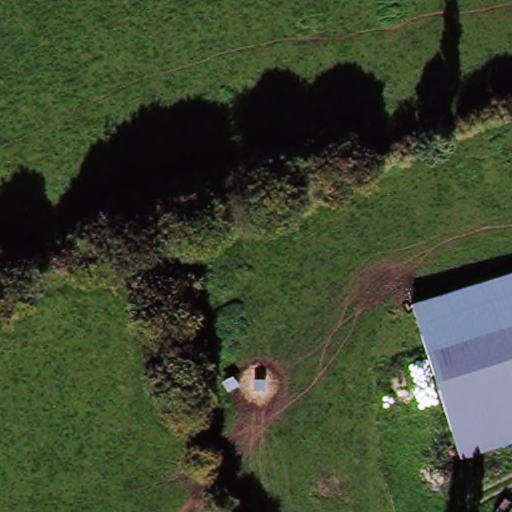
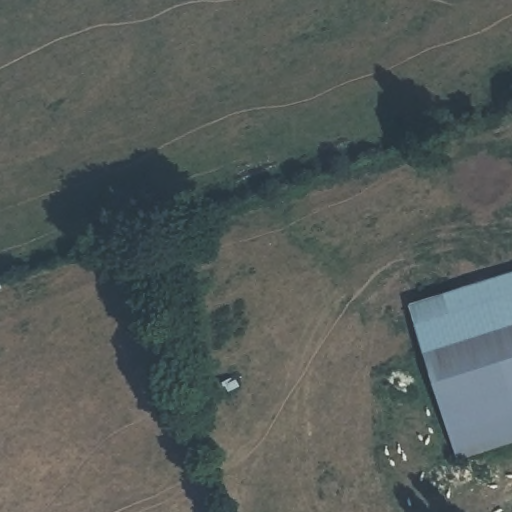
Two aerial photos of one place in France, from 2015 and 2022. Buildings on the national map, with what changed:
unchanged [(512,268),(512,326),(430,355),(413,300),(512,268)]
unchanged [(512,326),(512,442),(464,459),(430,355),(512,326)]

